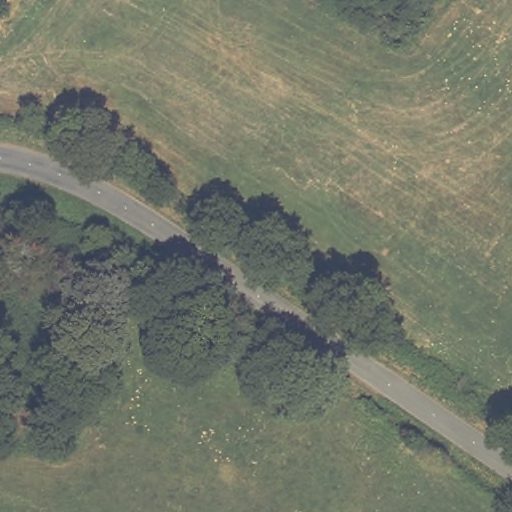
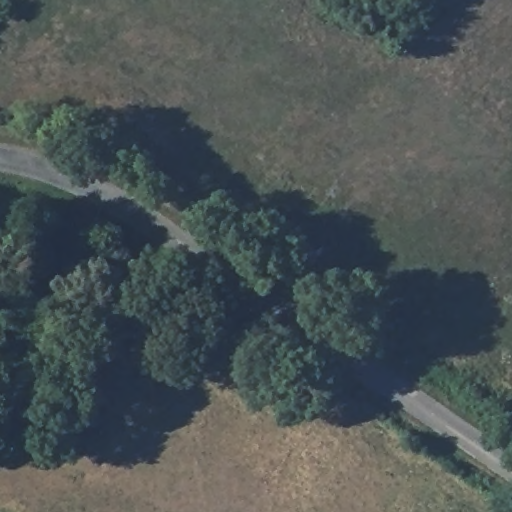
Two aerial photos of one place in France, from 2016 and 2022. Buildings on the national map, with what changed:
unchanged [(66,387),(61,419),(28,408),(33,385),(66,387)]

